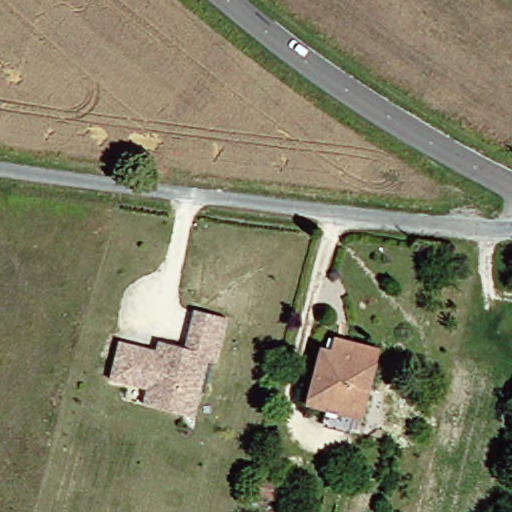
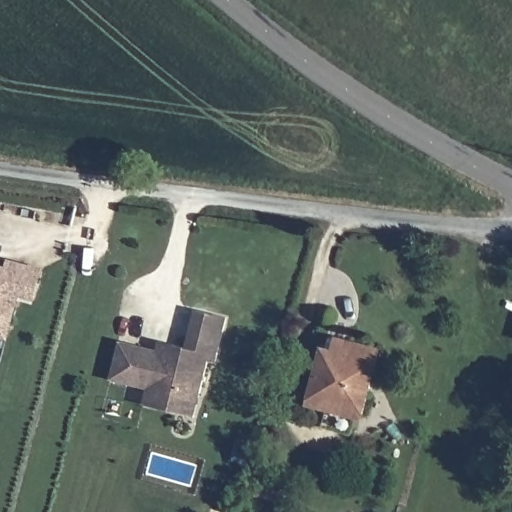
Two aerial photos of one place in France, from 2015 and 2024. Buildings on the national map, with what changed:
new [(9,341),(0,339),(0,265),(6,266),(7,261),(44,268),(36,300),(20,297),(9,341)]
unchanged [(144,407),(147,395),(149,389),(111,381),(117,344),(156,352),(157,342),(170,343),(184,345),(192,306),(223,314),(214,360),(205,359),(200,393),(195,415),(144,407)]
unchanged [(327,413),(303,406),(316,354),(329,356),(332,342),(343,344),(377,353),(367,392),(358,419),(327,413)]

